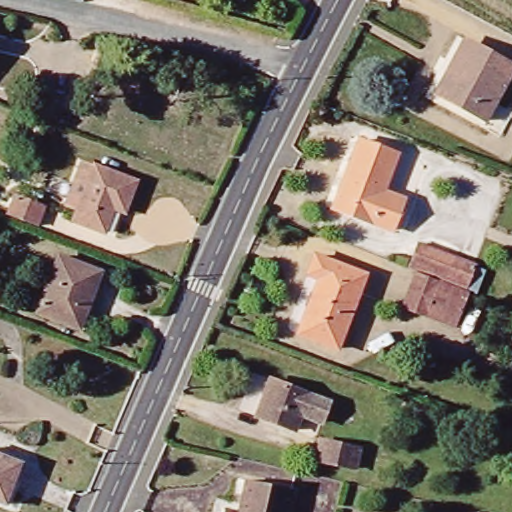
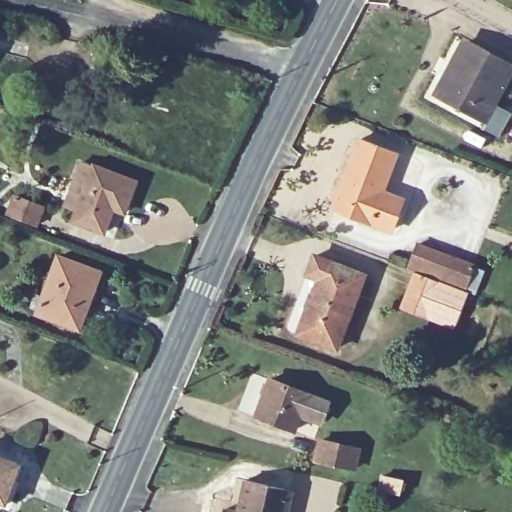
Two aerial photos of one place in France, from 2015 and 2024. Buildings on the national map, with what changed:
unchanged [(484,118),(438,95),(450,70),(460,75),(477,38),(512,55),(512,59),(484,118)]
unchanged [(393,231),(330,205),(357,138),(394,153),(378,194),(403,205),(393,231)]
unchanged [(126,222),(116,218),(107,237),(75,223),(80,212),(67,206),(86,163),(99,167),(139,186),(126,222)]
unchanged [(12,212),(35,221),(30,236),(6,227),(12,212)]
unchanged [(421,244),(467,260),(459,283),(424,271),(414,267),(421,244)]
unchanged [(300,334),(319,282),(308,278),(315,257),(366,276),(339,348),(300,334)]
unchanged [(96,279),(79,327),(41,312),(59,265),(96,279)]
unchanged [(463,320),(437,311),(433,313),(414,303),(424,271),(459,283),(474,288),(463,320)]
unchanged [(294,432),(254,416),(268,381),(327,404),(325,419),(302,411),(294,432)]
unchanged [(331,445),(367,453),(362,474),(327,466),(331,445)]
unchanged [(0,500),(0,455),(20,463),(6,503),(0,500)]
unchanged [(289,496),(286,512),(244,512),(249,487),(289,496)]
unchanged [(236,512),(233,512),(233,511),(236,512)]

